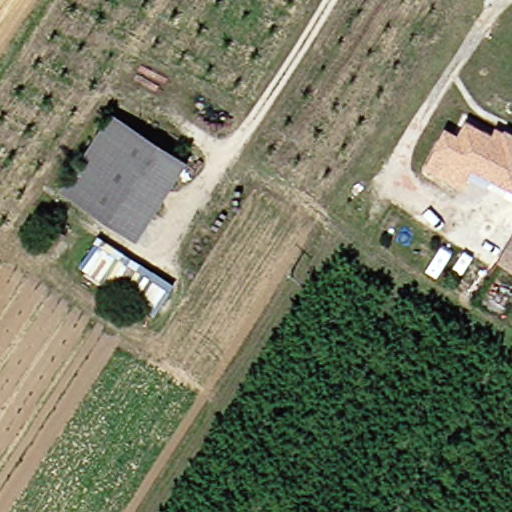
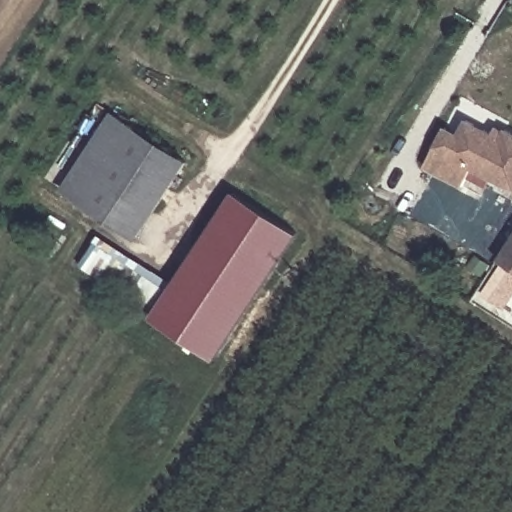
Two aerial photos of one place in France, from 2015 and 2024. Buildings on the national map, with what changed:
unchanged [(177,161),(128,238),(51,188),(100,112),(177,161)]
unchanged [(512,188),(473,167),(463,186),(430,168),(424,165),(445,126),(458,133),(466,119),(493,133),(496,126),(505,131),(506,129),(512,132),(512,188)]
new [(212,362),(149,321),(231,195),(294,235),(212,362)]
unchanged [(512,237),(512,266),(498,257),(512,237)]
new [(71,270),(88,245),(166,295),(150,320),(71,270)]

